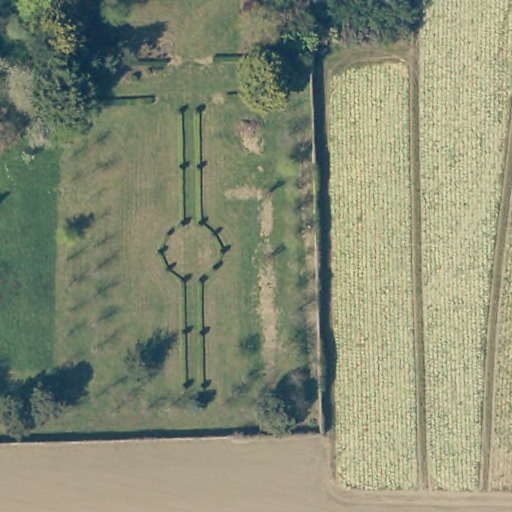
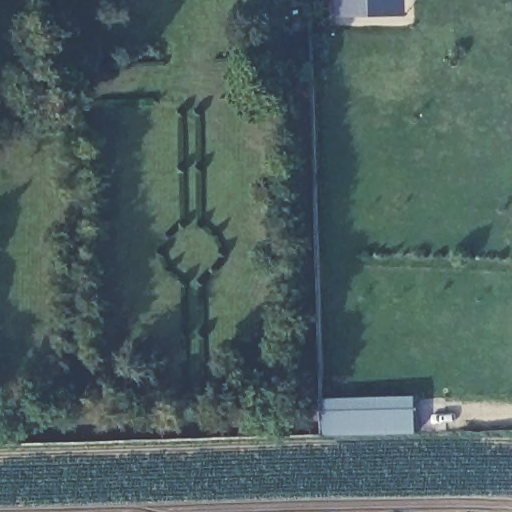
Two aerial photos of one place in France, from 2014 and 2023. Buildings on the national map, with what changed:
unchanged [(343,21),(343,0),(406,0),(407,16),(343,21)]
new [(417,434),(321,435),(320,398),(414,395),(417,434)]

